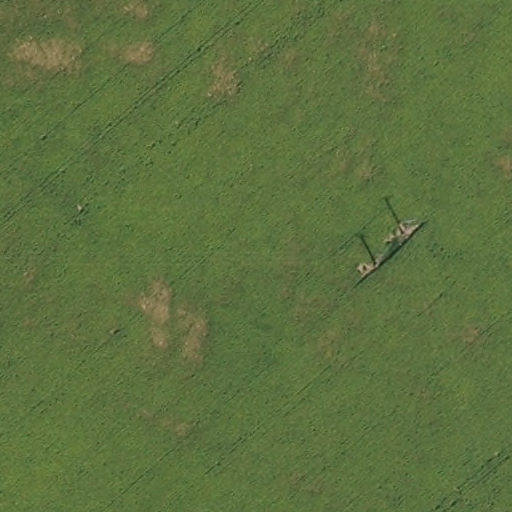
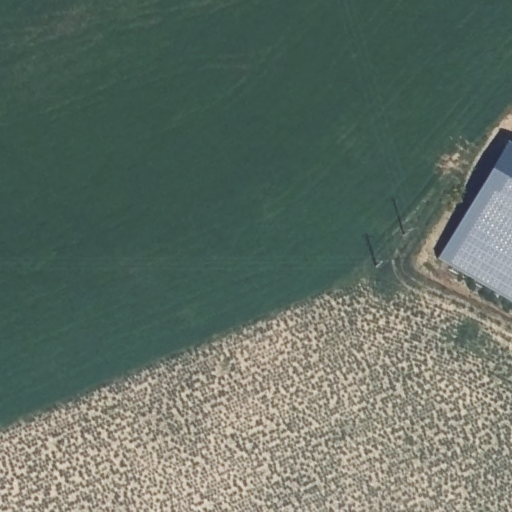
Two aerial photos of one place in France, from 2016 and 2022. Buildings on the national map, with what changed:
new [(436,258),(506,142),(512,146),(512,303),(436,258)]

